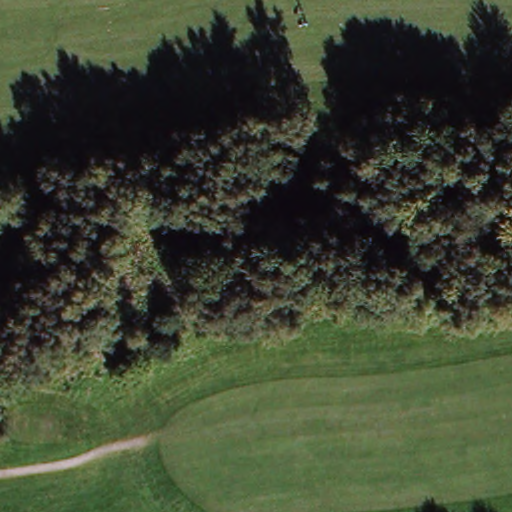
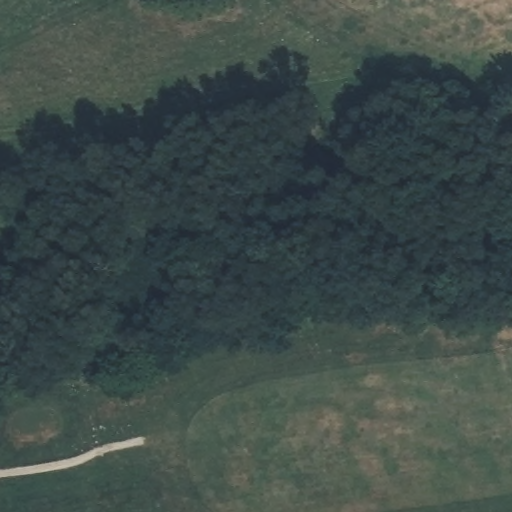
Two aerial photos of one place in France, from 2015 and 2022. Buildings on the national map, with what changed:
[]

